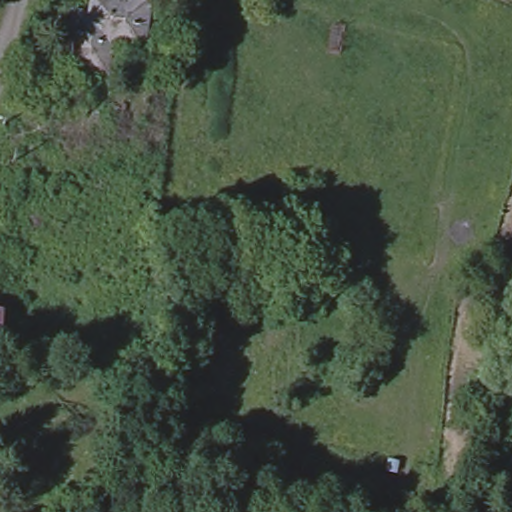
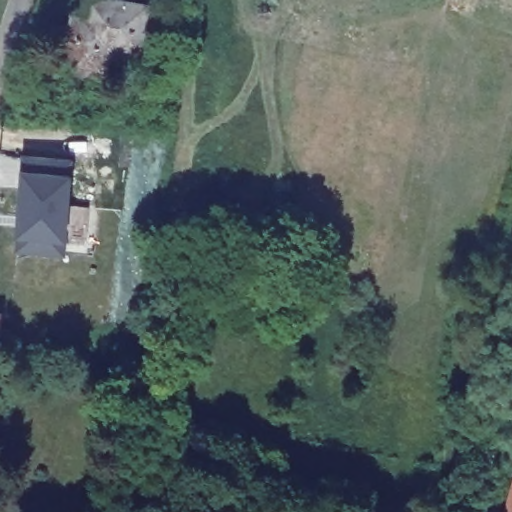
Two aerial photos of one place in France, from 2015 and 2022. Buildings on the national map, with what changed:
unchanged [(139,53),(108,48),(104,76),(63,70),(68,33),(83,36),(88,0),(114,0),(146,4),(139,53)]
new [(96,227),(64,225),(63,250),(17,247),(24,155),(69,158),(66,202),(98,205),(96,227)]
unchanged [(512,484),(512,512),(505,512),(512,484)]

